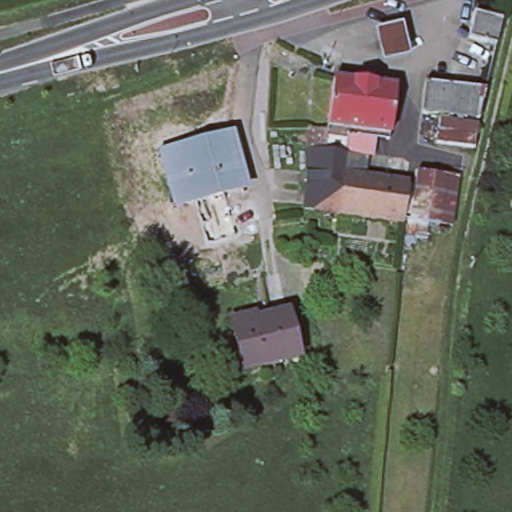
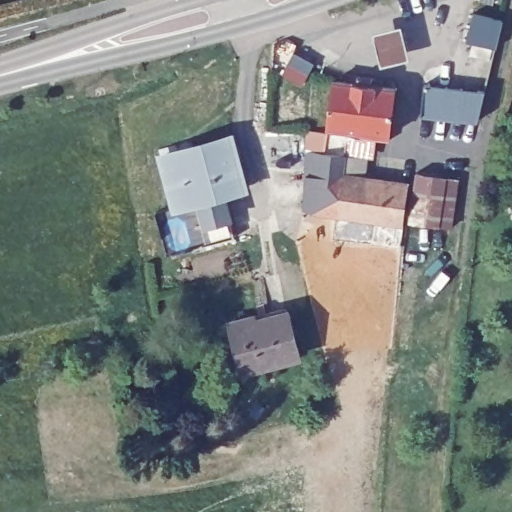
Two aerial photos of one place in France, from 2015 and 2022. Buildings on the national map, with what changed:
unchanged [(501,21),(495,47),(466,40),(473,14),(501,21)]
unchanged [(398,26),(408,58),(380,66),(373,32),(398,26)]
unchanged [(359,218),(336,215),(303,210),(306,151),(307,130),(326,133),(326,128),(333,80),(395,88),(389,136),(388,142),(373,140),(371,156),(345,153),(344,156),(341,175),(365,178),(409,184),(404,224),(359,218)]
unchanged [(485,90),(478,121),(420,114),(424,84),(485,90)]
unchanged [(246,189),(174,209),(163,165),(160,156),(192,147),(231,136),(246,189)]
unchanged [(458,179),(452,227),(410,222),(416,173),(458,179)]
unchanged [(287,313),(299,356),(253,369),(243,371),(230,323),(253,317),(254,322),(256,321),(287,313)]

